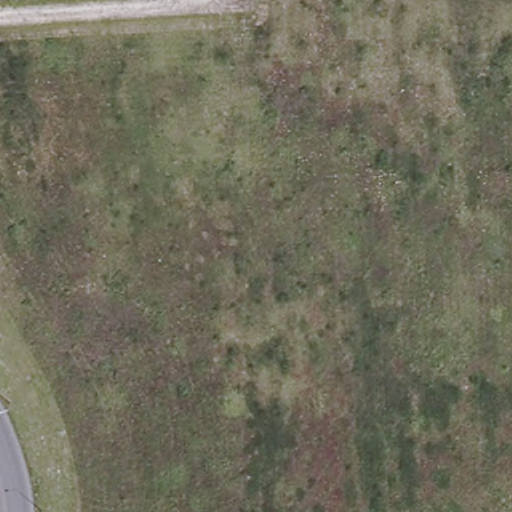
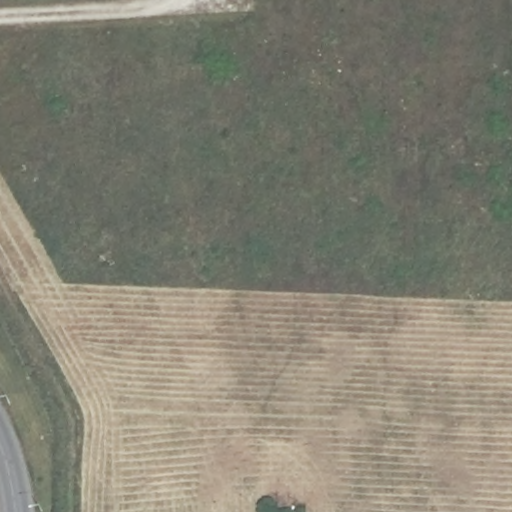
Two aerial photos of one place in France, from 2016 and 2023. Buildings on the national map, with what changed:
[]

